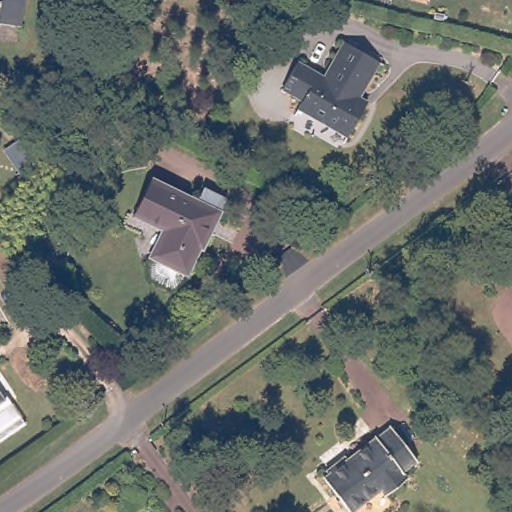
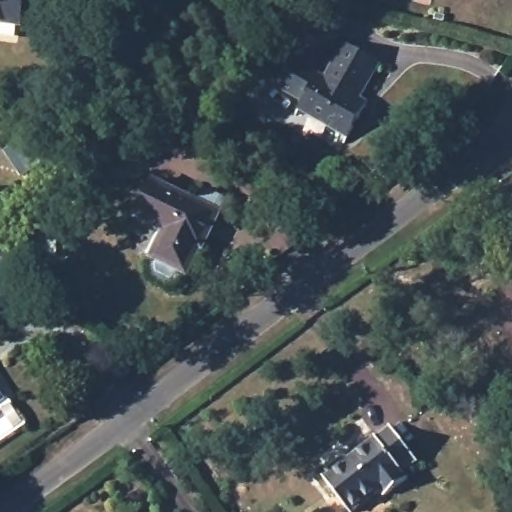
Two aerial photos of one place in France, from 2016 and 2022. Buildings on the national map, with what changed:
unchanged [(0,26),(0,0),(27,0),(24,29),(0,26)]
unchanged [(202,0),(204,0),(204,1),(202,0)]
unchanged [(296,64),(322,79),(343,42),(378,61),(357,98),(366,102),(347,135),(298,109),(302,102),(281,90),(296,64)]
unchanged [(137,221),(155,185),(201,207),(207,193),(229,204),(222,219),(222,220),(214,238),(206,253),(204,253),(190,280),(187,278),(182,289),(172,294),(154,284),(152,270),(156,263),(153,262),(166,236),(137,221)]
unchanged [(0,395),(4,401),(0,403),(0,395)]
unchanged [(380,438),(381,439),(395,428),(420,463),(401,477),(406,484),(383,500),(380,495),(356,512),(353,512),(327,479),(380,438)]

